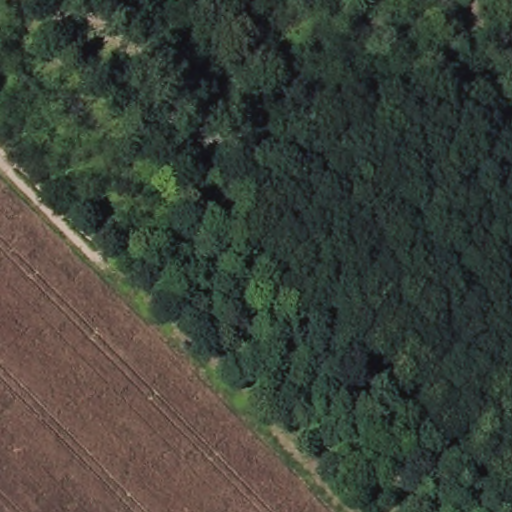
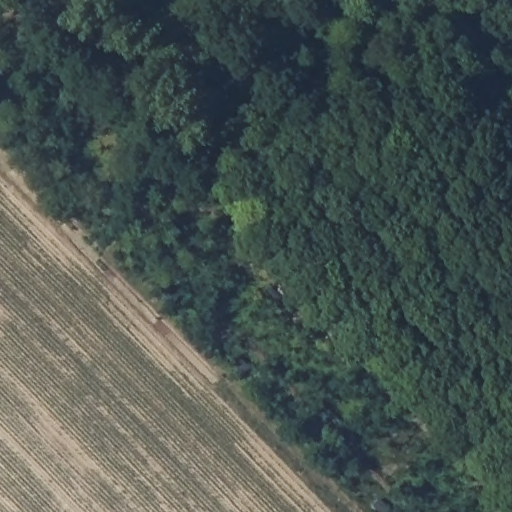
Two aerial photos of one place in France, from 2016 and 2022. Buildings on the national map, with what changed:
[]

